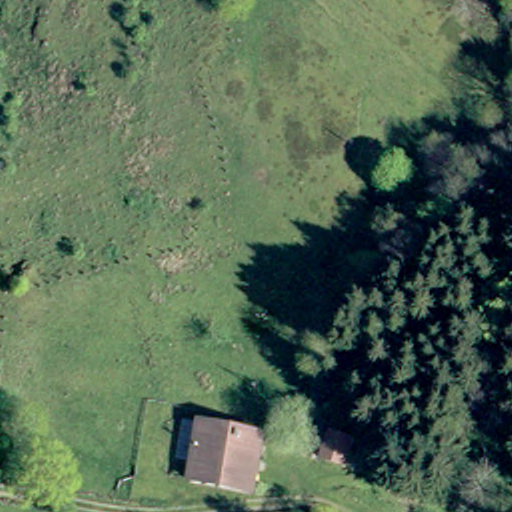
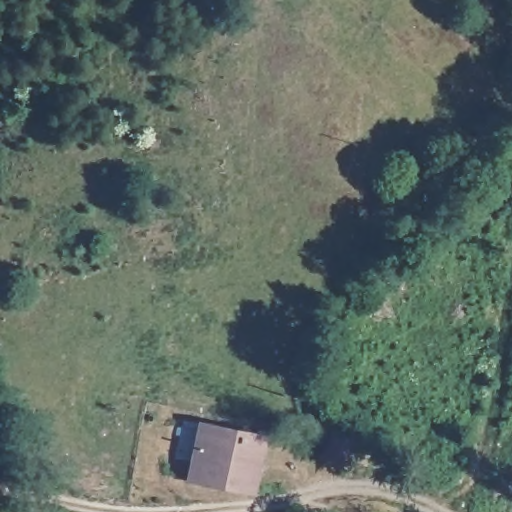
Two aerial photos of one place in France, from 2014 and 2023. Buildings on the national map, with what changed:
unchanged [(257,497),(212,488),(196,486),(206,429),(270,441),(257,497)]
unchanged [(333,437),(353,443),(345,471),(326,465),(325,464),(333,437)]

